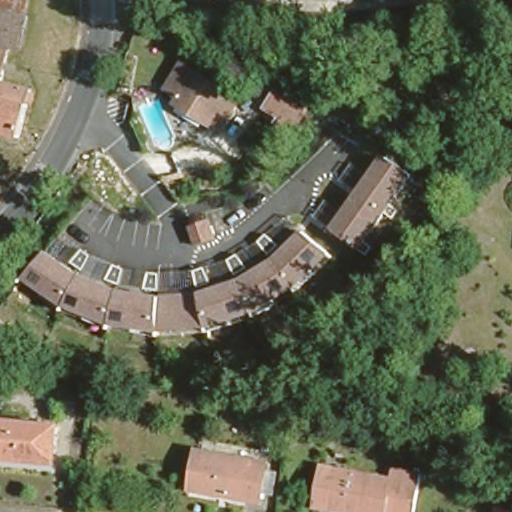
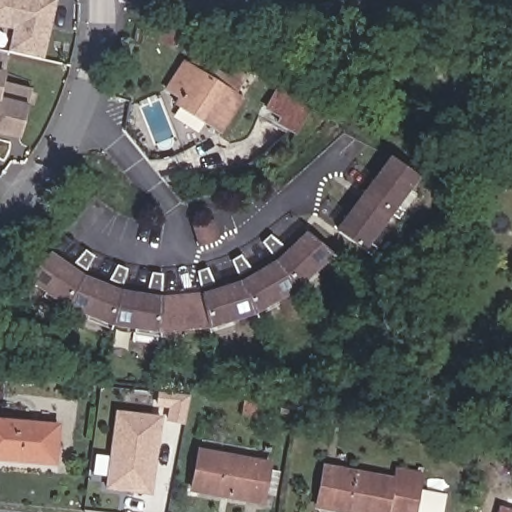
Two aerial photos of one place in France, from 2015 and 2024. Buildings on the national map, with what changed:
new [(43,59),(8,51),(11,30),(0,27),(0,0),(56,0),(43,59)]
demolished [(4,40),(0,55),(0,39),(4,40)]
unchanged [(160,77),(179,49),(240,88),(218,124),(179,99),(155,85),(160,77)]
new [(5,55),(4,71),(2,81),(29,88),(26,105),(19,139),(0,134),(0,54),(5,55)]
demolished [(24,80),(14,123),(0,120),(0,75),(24,80)]
unchanged [(302,130),(300,130),(270,111),(285,88),(315,107),(302,130)]
unchanged [(397,204),(403,211),(396,219),(390,212),(370,242),(376,248),(370,256),(362,251),(332,228),(385,155),(417,177),(397,204)]
new [(211,211),(221,237),(203,245),(192,219),(211,211)]
unchanged [(333,256),(295,291),(251,315),(206,328),(158,332),(109,326),(64,307),(25,280),(49,251),(81,275),(119,290),(160,296),(200,292),(239,280),(275,258),(303,231),(333,256)]
new [(154,407),(155,396),(187,401),(183,425),(161,421),(151,496),(104,490),(114,410),(160,416),(161,408),(154,407)]
unchanged [(263,426),(238,424),(240,409),(265,411),(263,426)]
unchanged [(51,421),(49,452),(0,448),(0,416),(51,421)]
unchanged [(270,491),(253,490),(252,496),(182,487),(186,447),(257,455),(256,466),(272,467),(270,491)]
unchanged [(418,470),(411,512),(408,512),(380,507),(380,512),(357,512),(325,507),(312,505),(316,467),(330,468),(385,476),(388,465),(418,470)]
unchanged [(512,503),(512,512),(492,512),(495,498),(512,503)]

